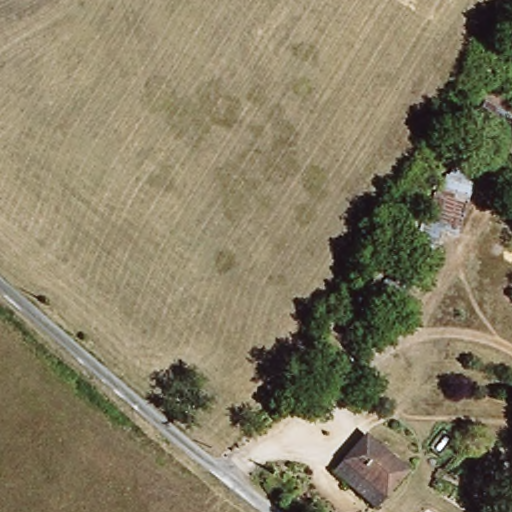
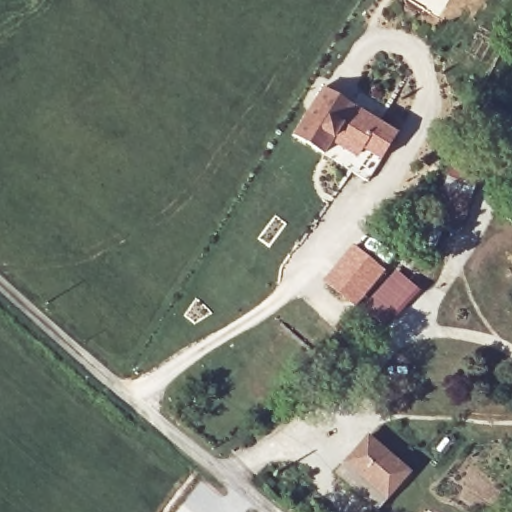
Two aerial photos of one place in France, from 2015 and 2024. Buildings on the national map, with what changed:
new [(382,160),(362,148),(359,156),(333,141),(325,155),(291,137),(322,88),(397,132),(382,160)]
unchanged [(460,189),(470,175),(488,187),(456,234),(428,213),(451,182),(460,189)]
new [(355,307),(323,281),(355,243),(384,270),(355,307)]
new [(385,327),(364,306),(397,270),(420,291),(385,327)]
unchanged [(385,508),(347,476),(377,438),(417,470),(385,508)]

